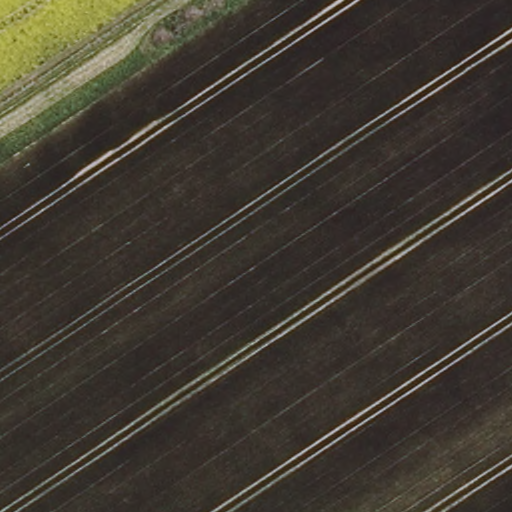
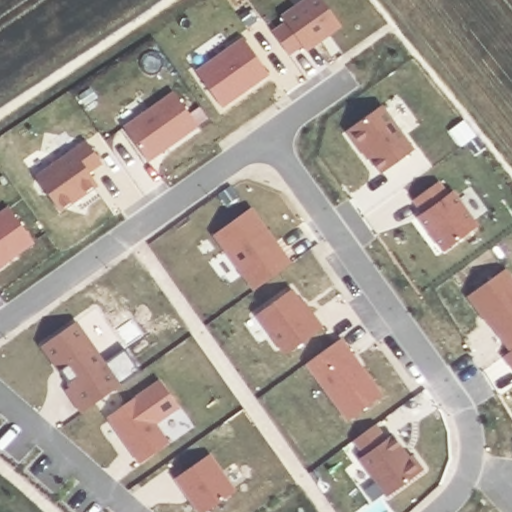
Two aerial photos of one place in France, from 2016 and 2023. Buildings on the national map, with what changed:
new [(302,47),(290,55),(272,30),(284,22),(280,15),(301,0),(322,0),(341,25),(307,52),(302,47)]
new [(222,108),(195,70),(242,37),(270,74),(222,108)]
new [(148,162),(124,125),(173,91),(199,126),(148,162)]
new [(380,175),(346,130),(381,104),(415,149),(380,175)]
new [(442,252),(416,215),(418,213),(410,201),(440,180),(449,192),(453,189),(478,226),(442,252)]
new [(0,211),(8,205),(35,242),(0,267),(0,211)]
new [(509,352),(466,296),(505,267),(512,276),(512,350),(509,352)]
new [(285,355),(255,315),(292,287),(302,301),(305,300),(324,327),(285,355)]
new [(81,412),(65,389),(69,385),(40,346),(76,320),(105,362),(124,348),(141,370),(81,412)]
new [(347,420),(306,362),(342,337),(382,394),(347,420)]
new [(503,356),(509,352),(512,350),(512,368),(503,356)]
new [(156,423),(170,443),(139,463),(106,416),(158,378),(180,407),(156,423)]
new [(386,498),(358,459),(362,455),(351,440),(376,423),(386,437),(391,433),(408,456),(413,453),(423,470),(386,498)]
new [(205,512),(198,512),(175,477),(209,452),(236,490),(205,512)]

